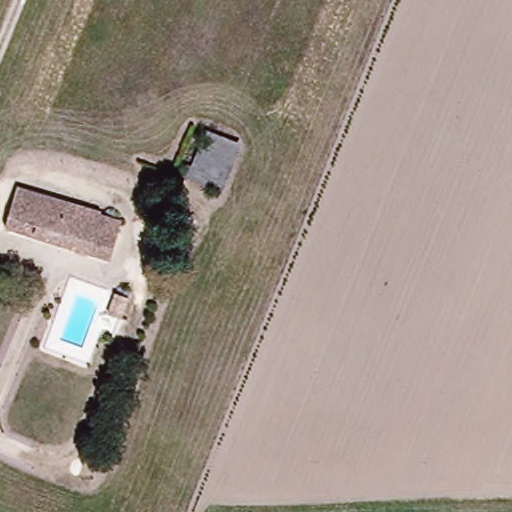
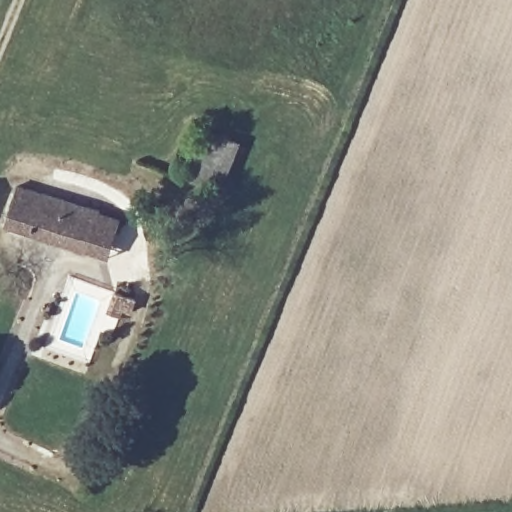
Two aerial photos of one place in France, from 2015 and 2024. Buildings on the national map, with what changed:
unchanged [(239,143),(218,189),(181,174),(199,125),(239,143)]
unchanged [(101,264),(82,256),(3,224),(20,186),(97,219),(116,227),(101,264)]
unchanged [(118,300),(108,323),(95,316),(105,294),(118,300)]

